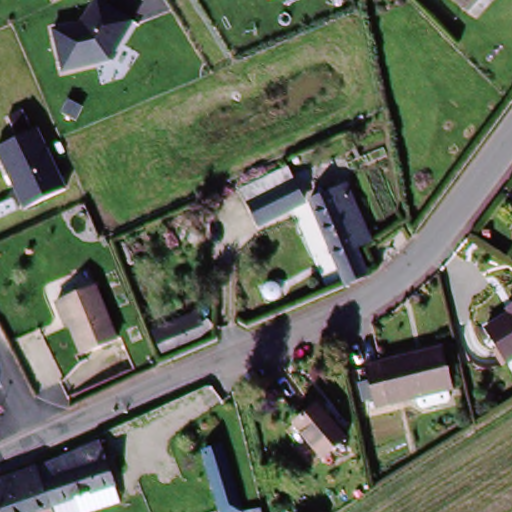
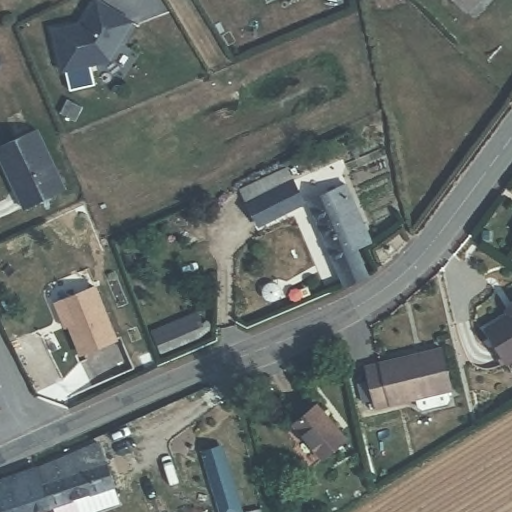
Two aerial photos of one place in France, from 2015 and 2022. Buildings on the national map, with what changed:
unchanged [(93,0),(101,0),(132,20),(110,61),(61,72),(50,28),(80,21),(93,0)]
unchanged [(462,0),(474,0),(468,6),(462,0)]
unchanged [(0,148),(37,129),(65,191),(21,211),(0,164),(0,148)]
unchanged [(286,165),(302,200),(258,220),(242,185),(286,165)]
unchanged [(344,182),(368,238),(356,244),(368,272),(346,282),(309,197),(344,182)]
unchanged [(70,317),(66,320),(59,302),(98,286),(120,338),(85,352),(70,317)]
unchanged [(507,362),(485,326),(512,308),(512,358),(507,362)]
unchanged [(440,346),(450,387),(375,406),(365,364),(440,346)]
unchanged [(316,402),(346,436),(323,455),(294,422),(316,402)]
unchanged [(47,489),(37,460),(98,437),(113,477),(53,498),(50,500),(47,489)]
unchanged [(198,446),(218,440),(237,505),(217,510),(198,446)]
unchanged [(50,500),(13,512),(3,512),(0,504),(0,474),(37,458),(37,460),(47,489),(50,500)]
unchanged [(71,512),(58,512),(53,498),(113,477),(119,496),(71,512)]
unchanged [(237,505),(253,500),(257,512),(240,512),(237,505)]

